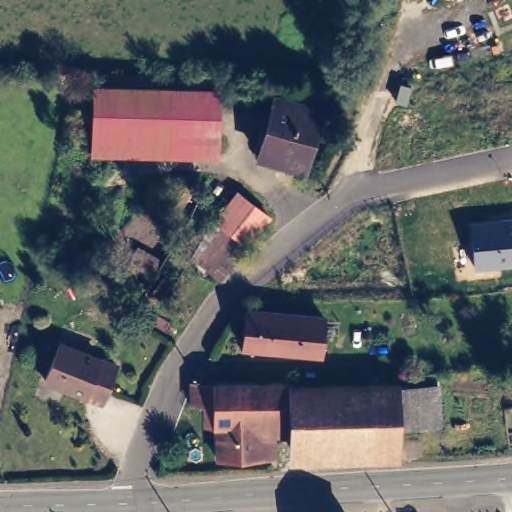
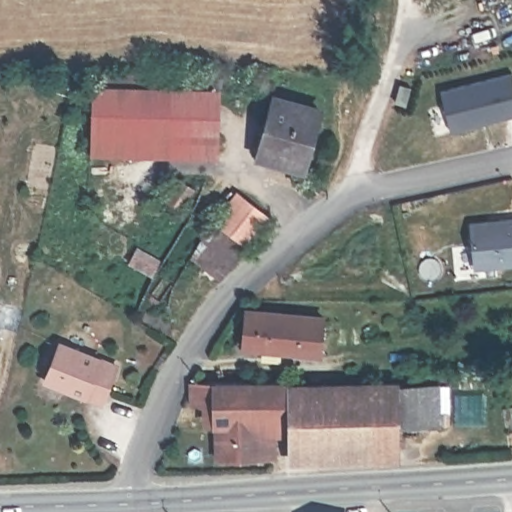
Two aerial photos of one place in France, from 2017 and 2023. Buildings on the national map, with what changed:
new [(441,89),(512,72),(512,115),(451,130),(441,89)]
unchanged [(134,156),(90,155),(91,85),(138,86),(220,89),(219,158),(134,156)]
unchanged [(320,110),(305,170),(262,160),(277,98),(320,110)]
unchanged [(272,215),(227,276),(200,263),(215,220),(237,192),(272,215)]
unchanged [(470,220),(512,217),(512,264),(475,268),(470,220)]
demolished [(386,240),(353,249),(349,231),(382,220),(386,240)]
unchanged [(340,358),(262,350),(265,315),(344,322),(340,358)]
unchanged [(116,366),(101,401),(47,380),(61,343),(116,366)]
unchanged [(287,390),(436,390),(436,429),(397,430),(396,450),(288,452),(287,428),(273,429),(274,463),(216,463),(215,408),(195,408),(192,387),(193,386),(215,385),(287,384),(287,390)]

